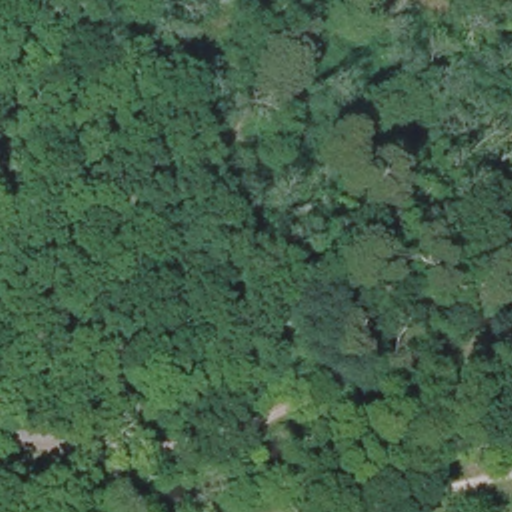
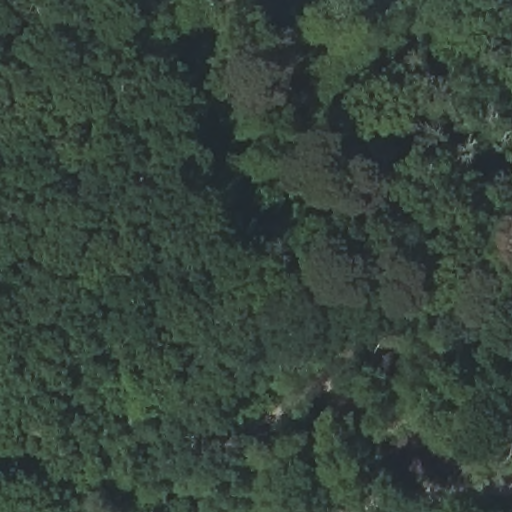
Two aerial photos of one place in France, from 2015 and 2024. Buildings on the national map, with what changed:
[]

